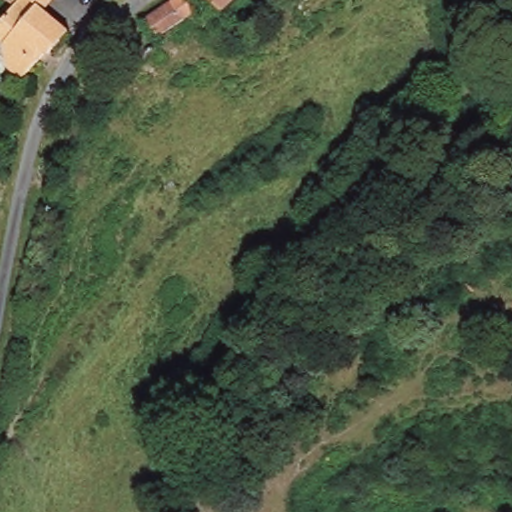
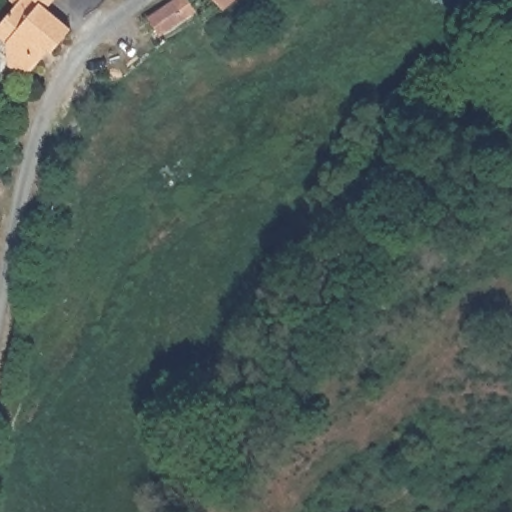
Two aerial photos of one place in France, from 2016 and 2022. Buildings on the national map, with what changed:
unchanged [(43,10),(68,30),(51,52),(48,51),(26,80),(8,65),(5,43),(0,39),(0,22),(14,5),(8,0),(50,0),(43,10)]
unchanged [(142,20),(170,0),(184,0),(193,12),(154,38),(142,20)]
unchanged [(222,9),(214,0),(234,0),(222,9)]

